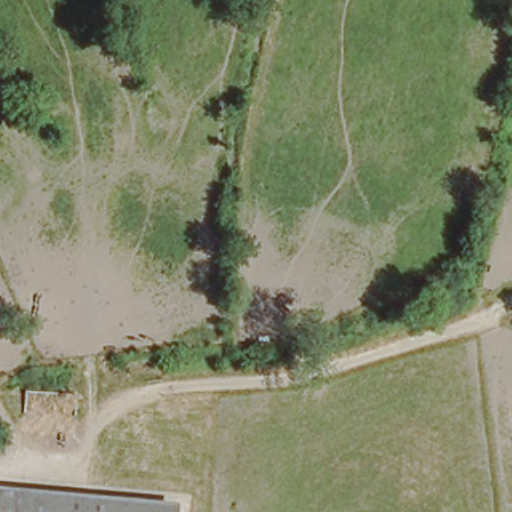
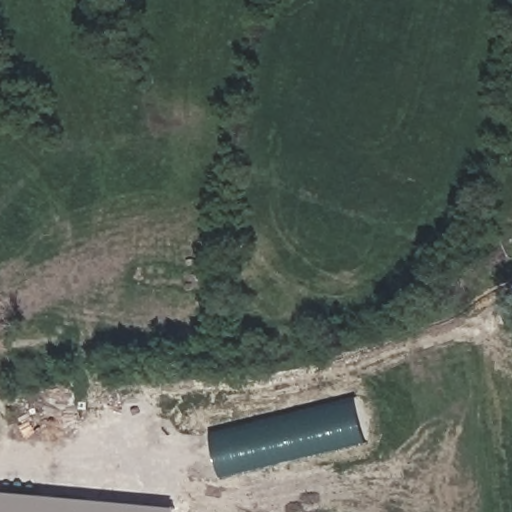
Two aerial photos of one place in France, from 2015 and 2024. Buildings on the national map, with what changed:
new [(358,397),(369,441),(223,477),(212,434),(358,397)]
unchanged [(176,512),(0,512),(0,490),(177,503),(176,512)]

